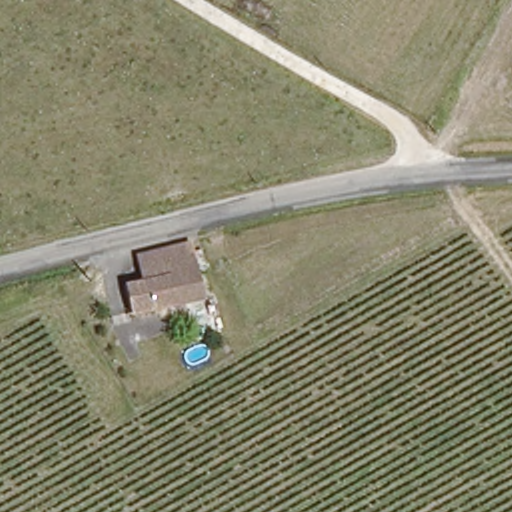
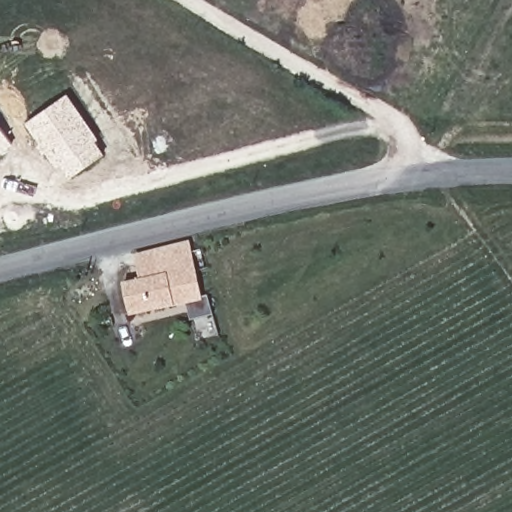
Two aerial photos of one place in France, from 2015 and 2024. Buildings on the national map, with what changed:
new [(69,95),(99,140),(96,142),(105,155),(73,177),(64,164),(60,167),(29,122),(69,95)]
new [(14,143),(0,153),(0,123),(14,143)]
unchanged [(188,245),(196,268),(202,298),(133,315),(126,286),(145,281),(139,257),(188,245)]

